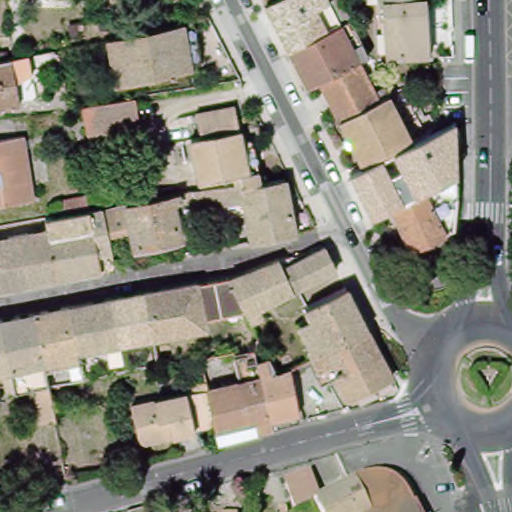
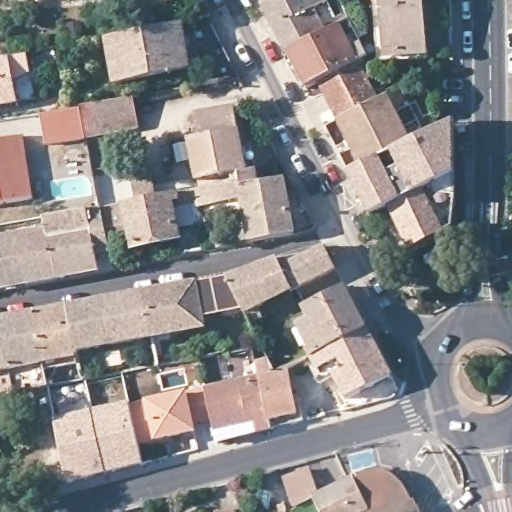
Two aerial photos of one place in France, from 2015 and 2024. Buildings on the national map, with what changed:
unchanged [(312,87),(300,93),(282,59),(258,12),(252,0),(253,0),(272,0),(274,4),(281,0),(332,0),(346,26),(363,61),(355,66),(312,87)]
unchanged [(386,64),(383,24),(377,25),(375,0),(423,0),(428,60),(386,64)]
unchanged [(102,39),(177,24),(187,22),(196,66),(185,68),(112,84),(102,39)]
unchanged [(23,103),(0,108),(0,61),(15,58),(23,103)]
unchanged [(355,66),(368,95),(378,91),(406,146),(407,149),(397,154),(395,151),(356,171),(312,87),(355,66)]
new [(80,109),(80,105),(133,96),(135,103),(87,111),(92,141),(47,148),(42,116),(80,109)]
unchanged [(92,141),(87,111),(139,103),(144,132),(92,141)]
unchanged [(257,168),(260,189),(242,192),(241,188),(239,178),(198,186),(190,146),(199,143),(195,118),(233,112),(240,146),(252,144),(257,168)]
unchanged [(33,199),(0,205),(0,141),(24,136),(27,161),(31,185),(33,199)]
unchanged [(395,151),(397,154),(407,149),(406,146),(420,139),(452,199),(450,231),(440,237),(420,195),(384,213),(365,222),(343,178),(356,171),(395,151)]
unchanged [(205,229),(187,232),(182,208),(173,209),(181,245),(134,254),(130,238),(110,241),(105,213),(135,207),(131,182),(152,178),(157,203),(190,197),(198,215),(205,229)]
unchanged [(242,192),(260,189),(284,185),(295,238),(250,248),(242,206),(198,215),(190,197),(241,188),(242,192)]
unchanged [(420,195),(440,237),(405,255),(384,213),(420,195)]
unchanged [(58,284),(48,234),(47,224),(63,221),(60,204),(85,200),(88,216),(100,214),(102,214),(113,273),(100,276),(58,284)]
unchanged [(0,295),(0,244),(48,234),(58,284),(0,295)]
unchanged [(279,265),(325,250),(337,275),(293,296),(279,265)]
unchanged [(230,282),(279,265),(293,296),(261,312),(265,322),(252,328),(247,316),(230,282)]
unchanged [(230,282),(247,316),(240,318),(223,317),(214,312),(202,315),(207,334),(153,343),(145,299),(230,282)]
unchanged [(322,351),(317,344),(322,341),(305,306),(345,287),(368,329),(322,351)]
unchanged [(153,343),(77,357),(68,313),(145,299),(153,343)]
unchanged [(77,357),(78,361),(44,369),(34,319),(68,313),(77,357)]
unchanged [(39,424),(32,394),(16,397),(10,374),(0,376),(0,326),(0,325),(34,319),(44,369),(49,391),(55,421),(39,424)]
unchanged [(368,329),(393,377),(347,399),(335,376),(320,384),(307,358),(322,351),(368,329)]
unchanged [(261,378),(257,363),(270,358),(277,372),(287,367),(298,414),(303,414),(305,422),(273,431),(261,378)]
unchanged [(207,390),(261,378),(273,431),(220,444),(216,428),(207,390)]
unchanged [(141,445),(132,407),(207,390),(216,428),(141,445)]
new [(92,411),(129,403),(144,466),(68,483),(54,420),(92,411)]
unchanged [(312,505),(298,512),(296,512),(287,484),(312,476),(323,501),(359,484),(357,481),(370,477),(377,476),(385,476),(388,477),(394,478),(400,482),(405,484),(408,489),(411,493),(417,504),(417,505),(421,512),(316,512),(312,505)]

